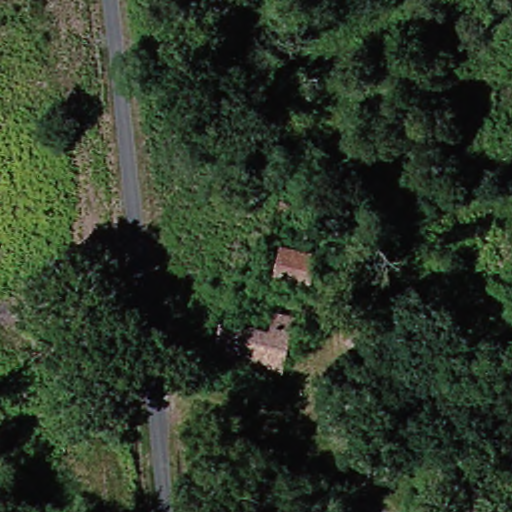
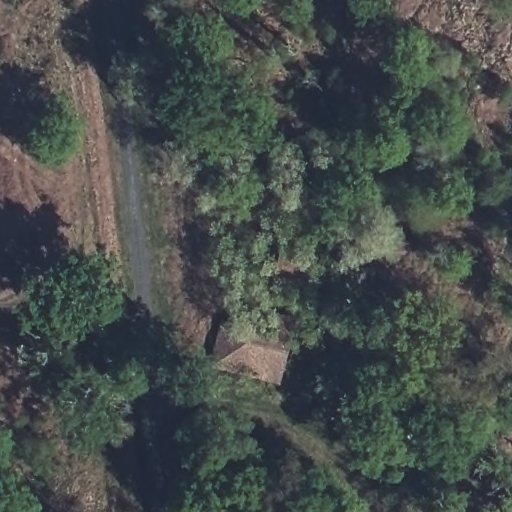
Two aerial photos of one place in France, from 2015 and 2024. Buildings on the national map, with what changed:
unchanged [(300,296),(274,288),(285,259),(310,269),(300,296)]
unchanged [(273,384),(205,360),(220,319),(261,331),(266,309),(294,317),(273,384)]

